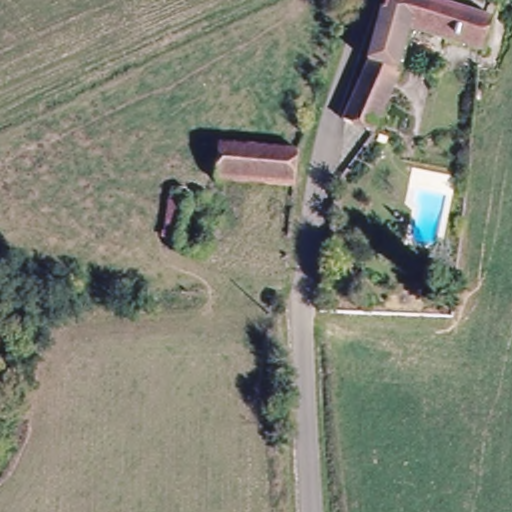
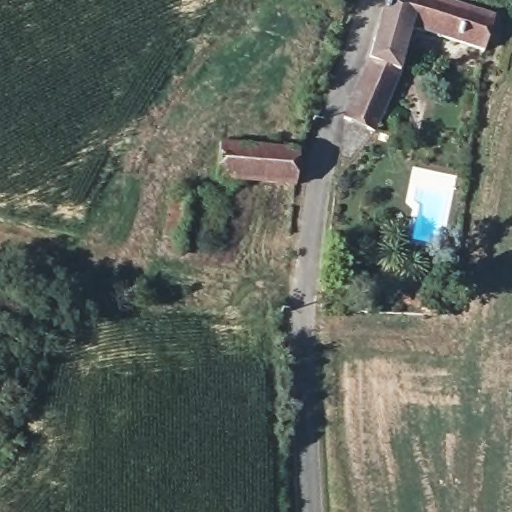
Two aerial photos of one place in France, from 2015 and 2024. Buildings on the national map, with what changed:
unchanged [(345,106),(383,0),(441,0),(498,14),(492,30),(504,34),(499,50),(488,47),(413,32),(395,85),(372,137),(367,135),(342,120),(345,106)]
unchanged [(214,161),(223,162),(225,142),(303,155),(300,192),(213,178),(214,161)]
unchanged [(201,192),(193,252),(164,249),(173,189),(201,192)]

